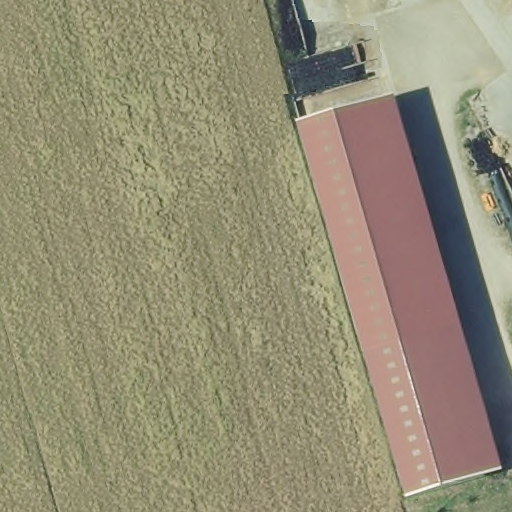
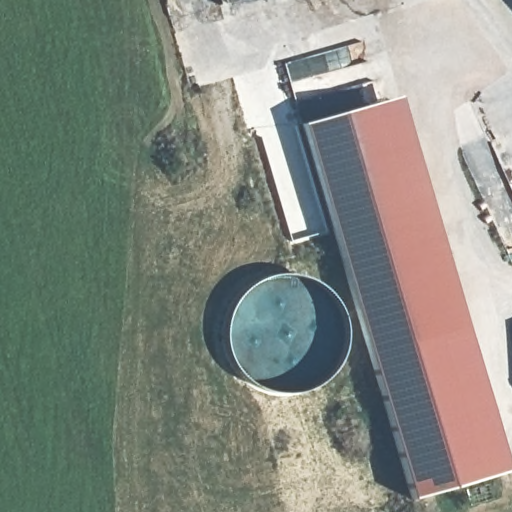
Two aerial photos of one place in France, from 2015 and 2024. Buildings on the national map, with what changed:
unchanged [(475,326),(469,328),(370,357),(299,125),(402,100),(475,326)]
unchanged [(512,475),(412,500),(370,357),(469,328),(512,464),(512,475)]

